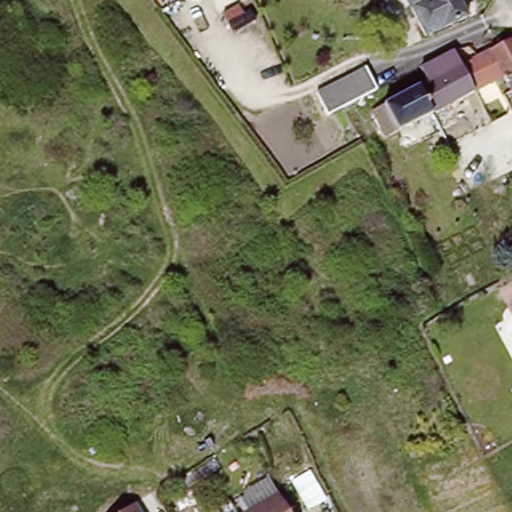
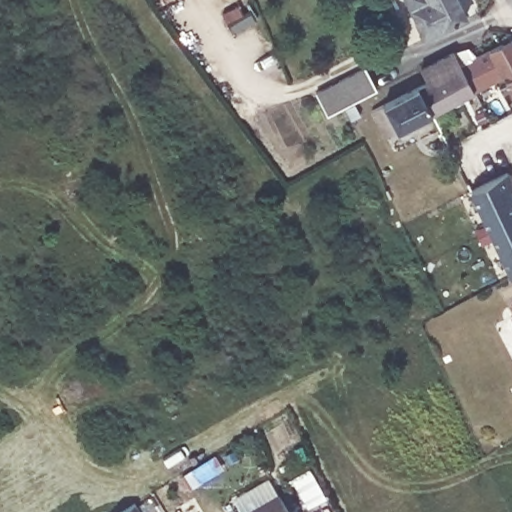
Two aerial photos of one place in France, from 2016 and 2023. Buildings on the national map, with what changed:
unchanged [(458,0),(467,17),(426,38),(411,9),(429,0),(458,0)]
unchanged [(453,103),(393,134),(378,107),(432,79),(426,68),(459,51),(464,63),(487,51),(512,38),(512,78),(509,74),(462,99),(464,104),(456,108),(453,103)]
unchanged [(321,88),(368,64),(379,85),(331,109),(321,88)]
new [(509,276),(469,190),(508,171),(512,180),(512,188),(509,189),(512,194),(512,275),(509,276)]
unchanged [(284,512),(239,512),(274,493),(284,512)]
unchanged [(136,504),(141,512),(122,512),(136,504)]

